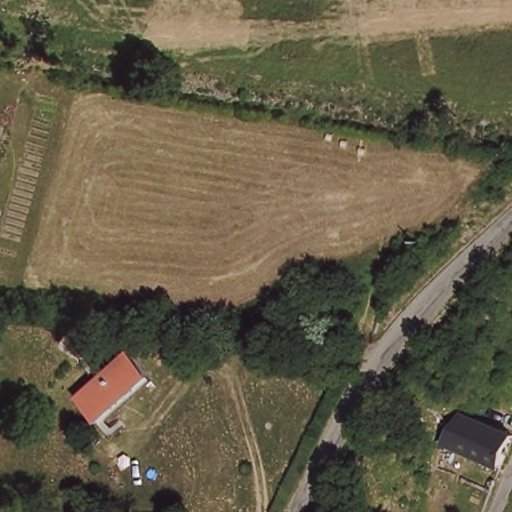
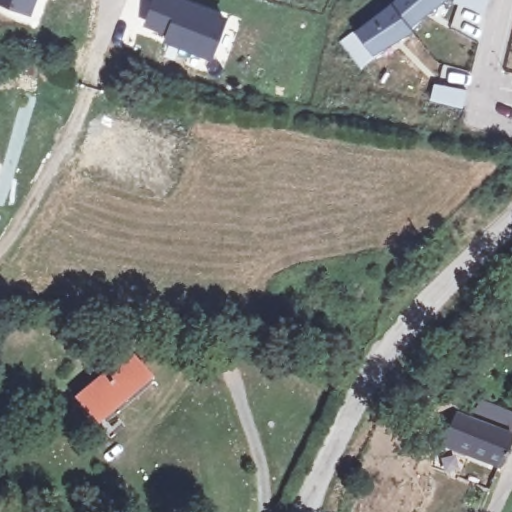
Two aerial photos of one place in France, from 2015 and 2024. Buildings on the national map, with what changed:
new [(30,13),(0,3),(0,0),(36,0),(30,13)]
new [(150,0),(190,0),(224,13),(210,58),(162,42),(164,34),(143,25),(150,0)]
new [(411,26),(414,31),(374,54),(361,68),(341,41),(357,30),(392,6),(397,0),(446,0),(411,26)]
new [(457,0),(491,0),(487,15),(456,4),(457,0)]
new [(437,87),(469,92),(466,109),(434,101),(437,87)]
unchanged [(125,351),(146,378),(90,420),(68,392),(125,351)]
unchanged [(438,410),(509,440),(498,464),(428,436),(438,410)]

